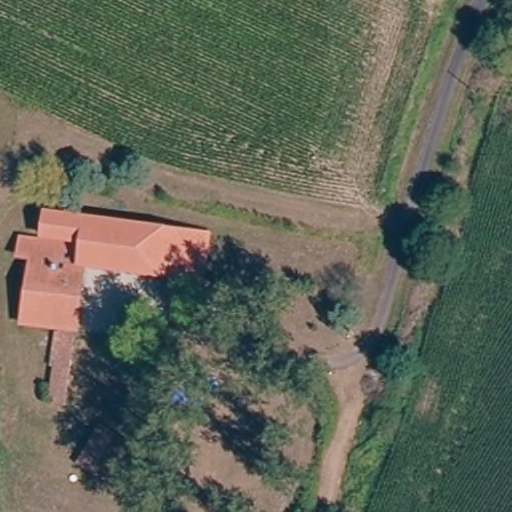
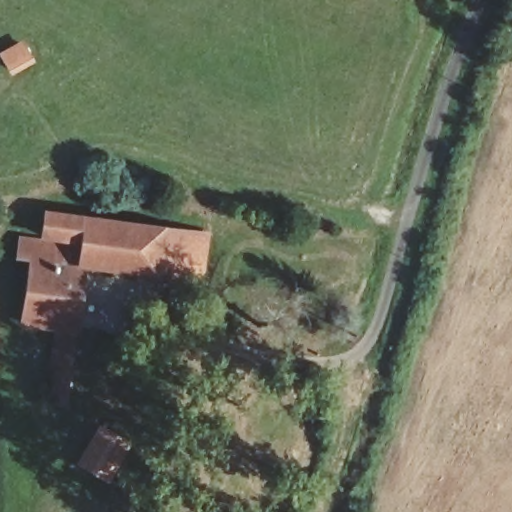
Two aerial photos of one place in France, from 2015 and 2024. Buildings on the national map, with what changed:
unchanged [(55,368),(46,368),(46,329),(26,328),(30,274),(15,271),(20,248),(53,254),(57,219),(186,232),(186,275),(82,263),(75,402),(74,404),(55,403),(55,368)]
unchanged [(186,275),(186,232),(213,235),(209,277),(186,275)]
unchanged [(95,477),(78,455),(109,429),(110,429),(117,440),(127,452),(95,477)]

